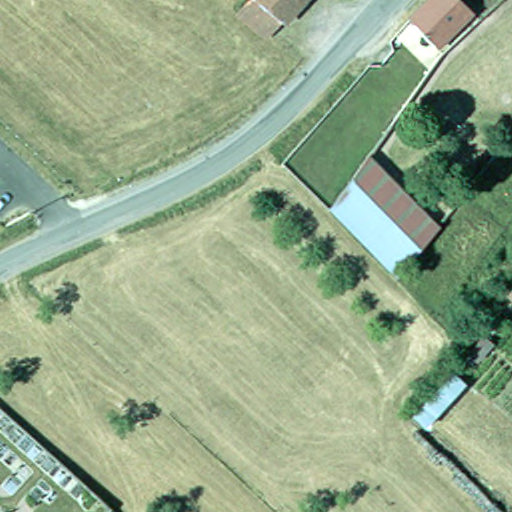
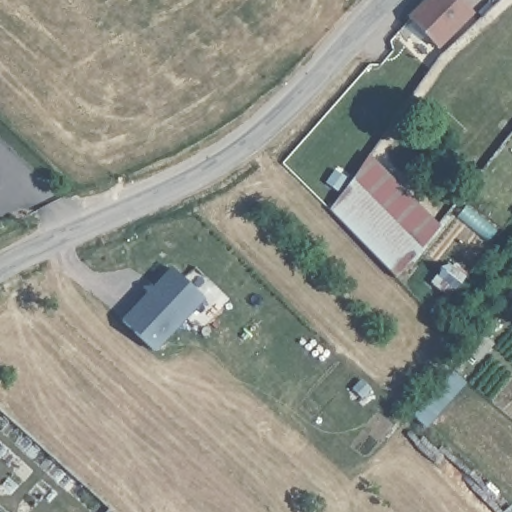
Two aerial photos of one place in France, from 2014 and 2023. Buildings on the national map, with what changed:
unchanged [(439,48),(410,27),(431,0),(465,0),(472,6),(439,48)]
unchanged [(361,146),(440,224),(398,275),(388,265),(325,200),(361,146)]
new [(120,322),(170,267),(206,299),(155,353),(120,322)]

